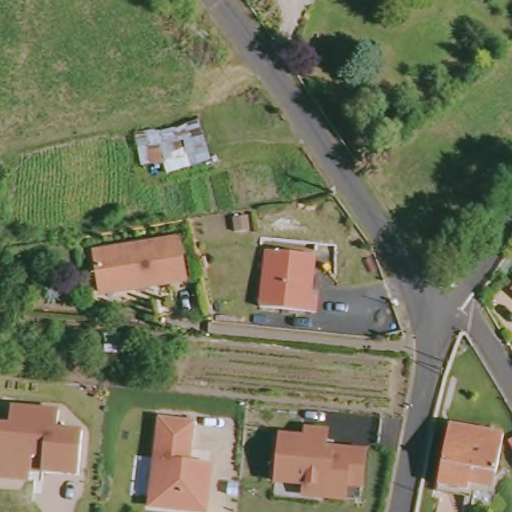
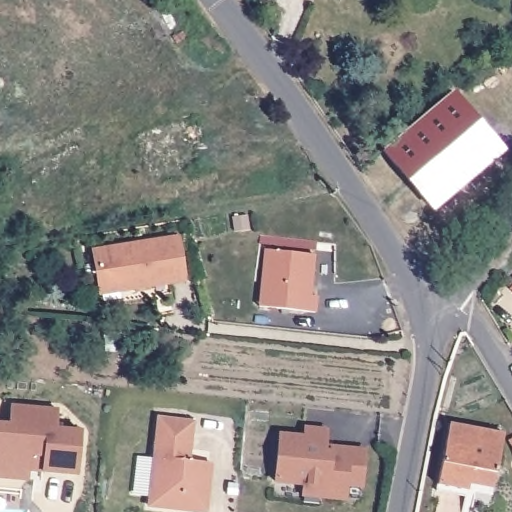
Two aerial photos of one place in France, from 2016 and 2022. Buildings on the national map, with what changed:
new [(453,89),(505,150),(434,209),(383,149),(453,89)]
demolished [(161,159),(136,164),(132,125),(196,112),(210,154),(166,171),(161,159)]
unchanged [(235,229),(232,214),(247,212),(250,227),(235,229)]
unchanged [(126,284),(125,279),(93,284),(87,245),(168,232),(175,231),(178,248),(182,274),(126,284)]
unchanged [(310,248),(306,289),(312,290),(311,306),(255,300),(261,243),(310,248)]
unchanged [(0,423),(8,424),(10,405),(58,409),(56,429),(82,431),(78,474),(42,471),(30,469),(29,479),(0,477),(0,423)]
unchanged [(499,429),(487,489),(434,479),(445,418),(499,429)]
unchanged [(149,508),(157,419),(191,422),(187,461),(210,463),(206,512),(200,512),(149,508)]
unchanged [(301,435),(302,424),(327,428),(327,443),(365,449),(362,488),(347,487),(345,501),(300,497),(301,487),(273,484),(276,432),(301,435)]
unchanged [(510,447),(505,436),(512,431),(512,450),(510,447)]

